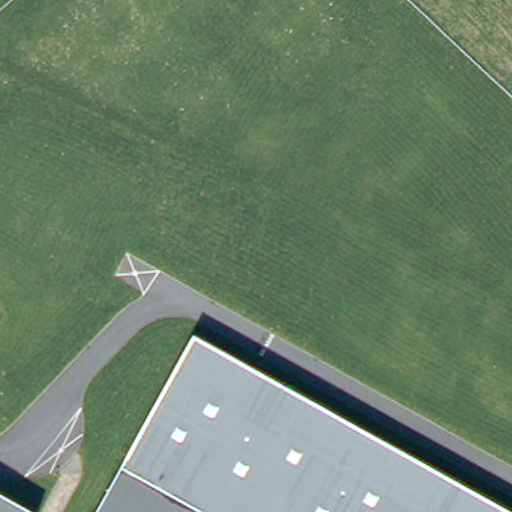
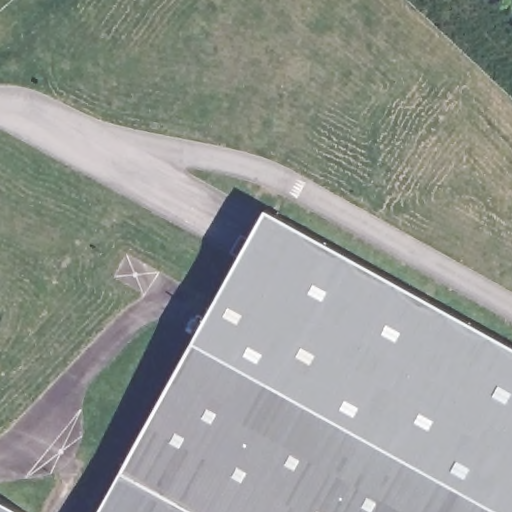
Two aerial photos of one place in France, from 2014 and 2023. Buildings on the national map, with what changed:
new [(512,344),(512,512),(505,512),(195,339),(267,208),(512,344)]
unchanged [(195,339),(505,512),(202,512),(122,468),(195,339)]
unchanged [(202,512),(97,512),(122,468),(202,512)]
unchanged [(35,512),(0,512),(0,493),(35,512)]

